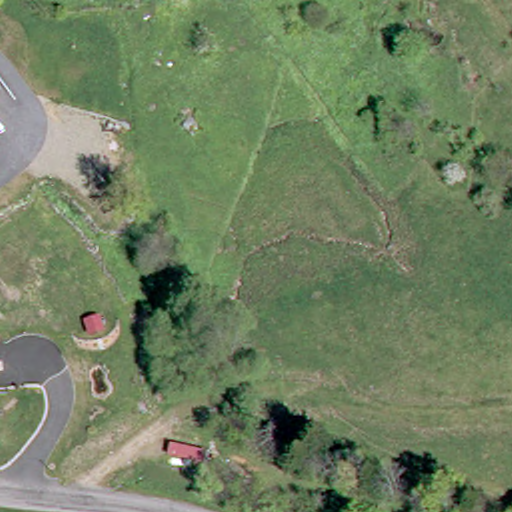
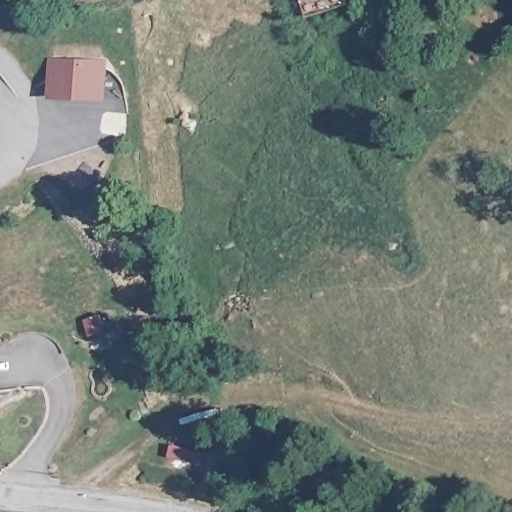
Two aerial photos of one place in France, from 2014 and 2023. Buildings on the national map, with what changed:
new [(107,58),(108,100),(47,99),(48,57),(107,58)]

